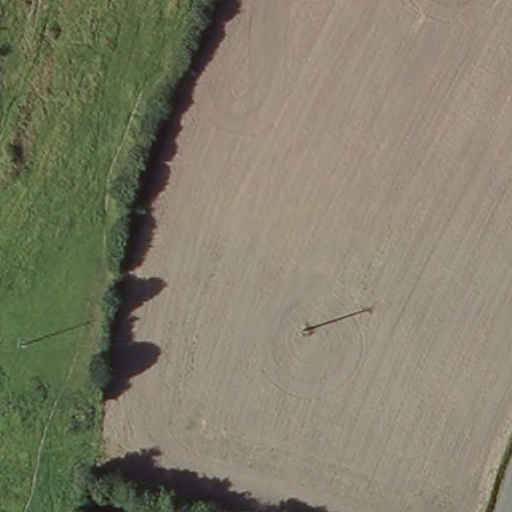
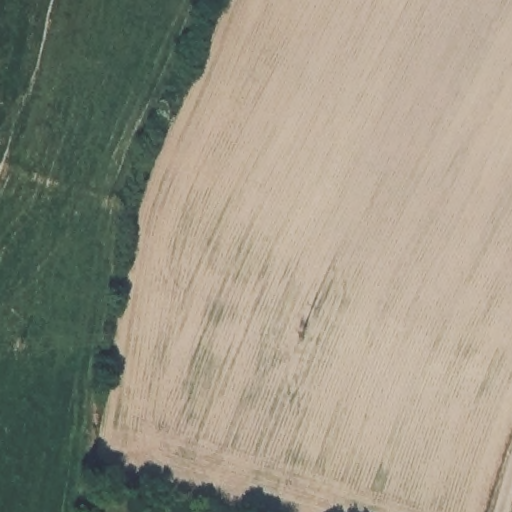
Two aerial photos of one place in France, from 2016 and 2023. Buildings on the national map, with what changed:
[]

